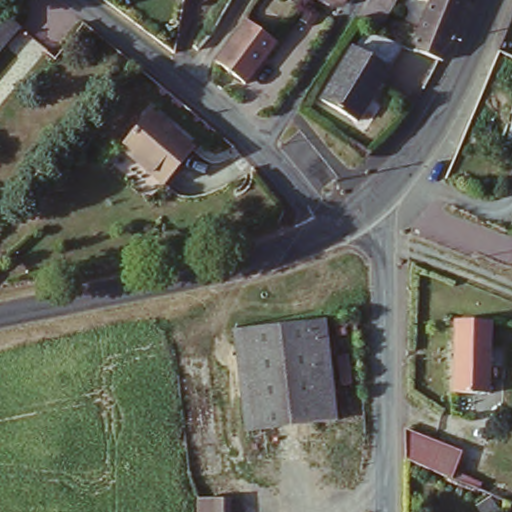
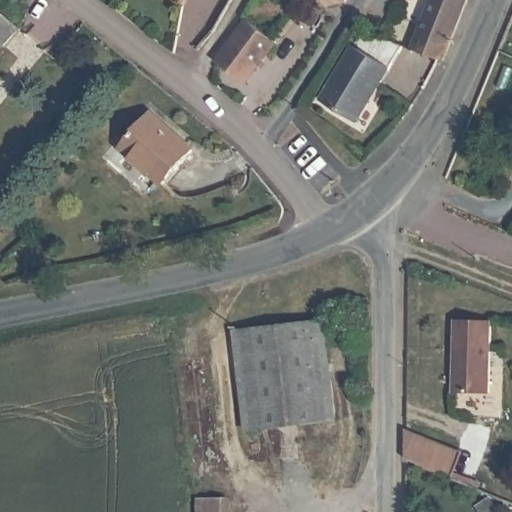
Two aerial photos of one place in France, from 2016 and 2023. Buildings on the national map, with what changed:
unchanged [(327,10),(311,0),(349,0),(345,6),(327,10)]
unchanged [(466,0),(440,64),(434,62),(410,51),(430,0),(466,0)]
unchanged [(0,51),(0,12),(18,29),(0,51)]
unchanged [(241,85),(214,65),(244,21),(272,42),(241,85)]
unchanged [(351,126),(316,105),(366,31),(376,36),(405,49),(351,126)]
unchanged [(163,179),(131,150),(124,143),(153,110),(164,119),(193,147),(163,179)]
unchanged [(317,317),(340,411),(252,433),(225,336),(317,317)]
unchanged [(493,322),(490,393),(452,391),(454,322),(493,322)]
unchanged [(457,452),(447,477),(400,457),(404,430),(457,452)]
unchanged [(225,498),(226,512),(195,512),(194,494),(225,498)]

